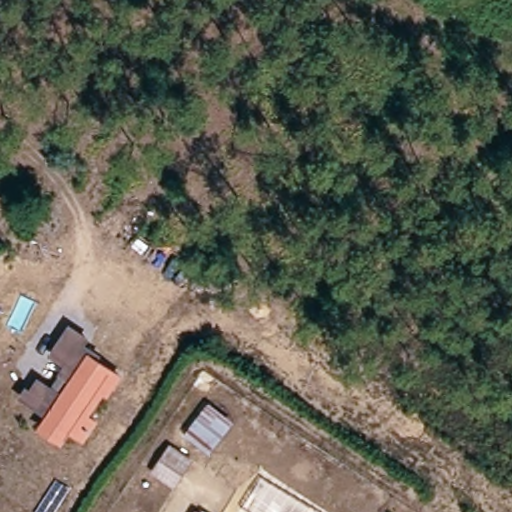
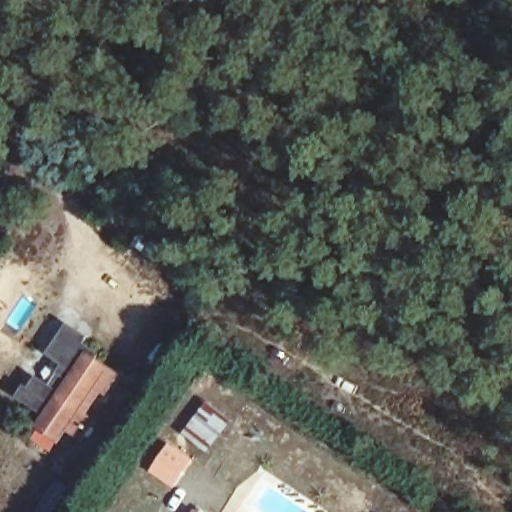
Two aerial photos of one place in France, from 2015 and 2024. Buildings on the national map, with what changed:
unchanged [(75,335),(91,346),(88,351),(126,376),(115,394),(110,390),(93,416),(102,422),(91,440),(77,430),(69,442),(49,430),(54,423),(40,414),(54,395),(66,403),(77,388),(66,381),(72,372),(56,362),(75,335)]
unchanged [(209,457),(185,437),(211,403),(235,422),(209,457)]
unchanged [(171,448),(192,462),(172,489),(152,475),(171,448)]

